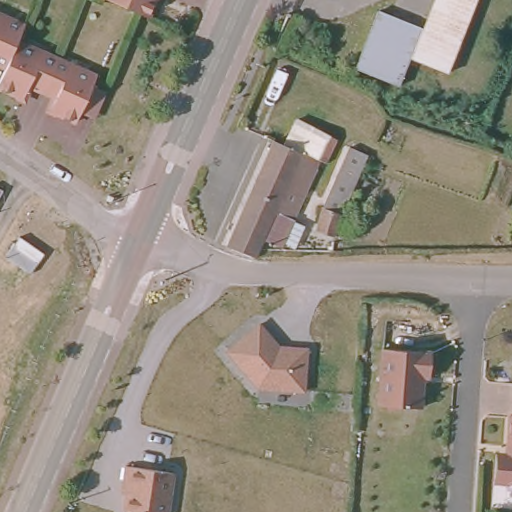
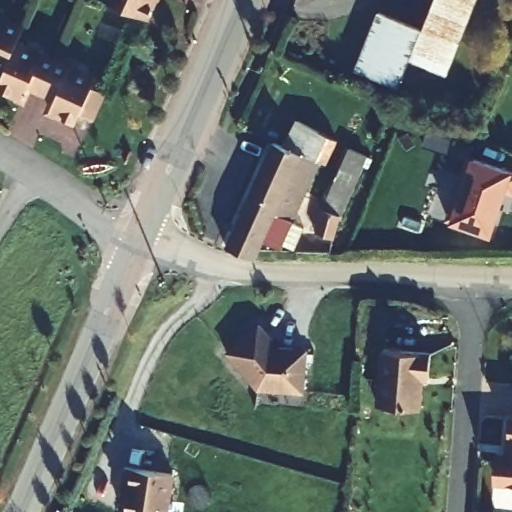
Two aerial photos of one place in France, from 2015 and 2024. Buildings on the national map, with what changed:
unchanged [(154,0),(146,16),(142,14),(109,0),(154,0)]
unchanged [(422,23),(431,0),(473,0),(443,71),(408,56),(422,23)]
unchanged [(422,23),(408,56),(397,84),(353,66),(378,5),(422,23)]
unchanged [(16,44),(97,78),(77,122),(52,112),(57,99),(37,91),(30,87),(25,100),(0,90),(0,85),(5,71),(2,69),(0,68),(0,19),(22,29),(16,44)]
unchanged [(258,243),(253,254),(223,244),(272,137),(283,110),(309,121),(320,128),(336,135),(325,158),(318,155),(292,215),(302,220),(292,243),(282,238),(279,244),(258,243)]
unchanged [(313,221),(322,197),(350,140),(367,147),(365,152),(352,177),(332,227),(313,221)]
new [(450,222),(472,156),(512,171),(512,193),(507,192),(492,236),(450,222)]
unchanged [(278,305),(268,305),(268,290),(279,290),(278,305)]
unchanged [(260,325),(275,345),(306,347),(305,392),(257,390),(227,353),(260,325)]
unchanged [(425,349),(423,375),(418,376),(415,406),(375,403),(379,346),(425,349)]
unchanged [(497,486),(498,458),(504,457),(505,416),(511,416),(512,402),(512,486),(497,486)]
unchanged [(172,471),(166,512),(140,512),(123,510),(125,496),(121,496),(125,467),(172,471)]

